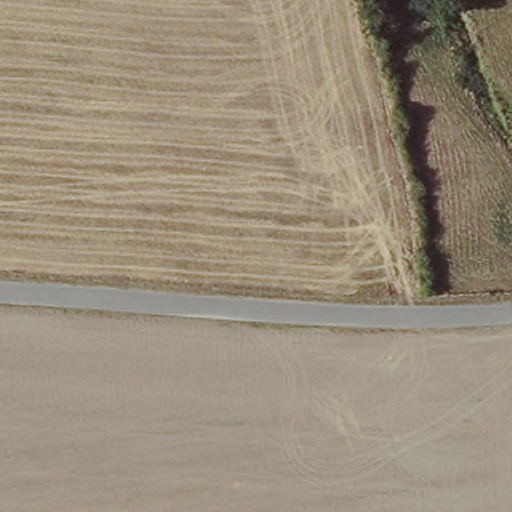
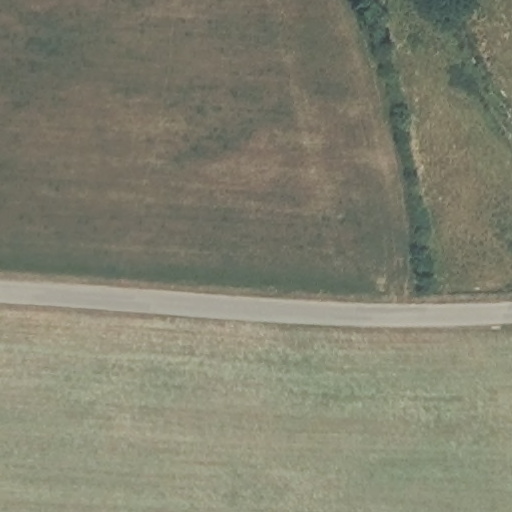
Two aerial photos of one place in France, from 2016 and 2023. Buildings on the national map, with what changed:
[]

